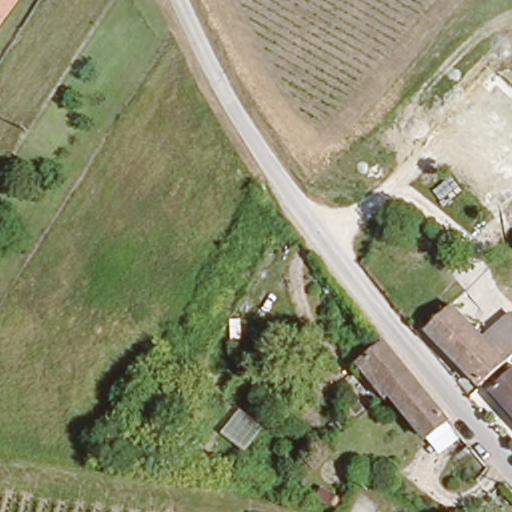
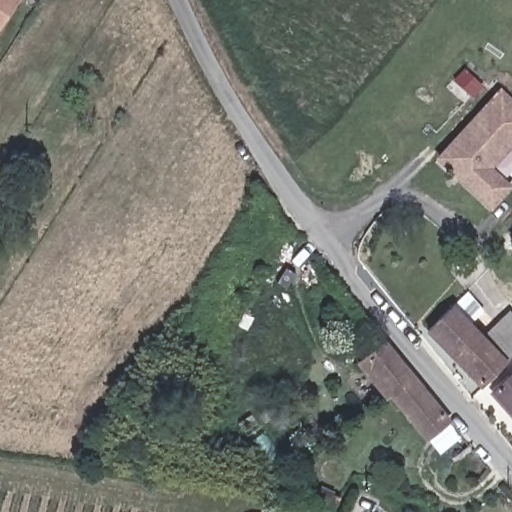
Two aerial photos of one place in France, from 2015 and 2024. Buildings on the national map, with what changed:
unchanged [(0,17),(0,0),(11,0),(0,17)]
new [(509,150),(512,154),(512,173),(506,179),(512,186),(512,188),(491,210),(433,159),(503,88),(512,97),(512,147),(509,150)]
unchanged [(482,385),(428,328),(453,306),(509,360),(482,385)]
unchanged [(441,455),(428,439),(423,443),(387,400),(384,401),(344,351),(371,328),(396,360),(440,412),(449,422),(462,438),(441,455)]
unchanged [(491,389),(512,370),(512,412),(491,389)]
unchanged [(322,512),(320,512),(314,509),(318,501),(319,501),(325,504),(322,512)]

